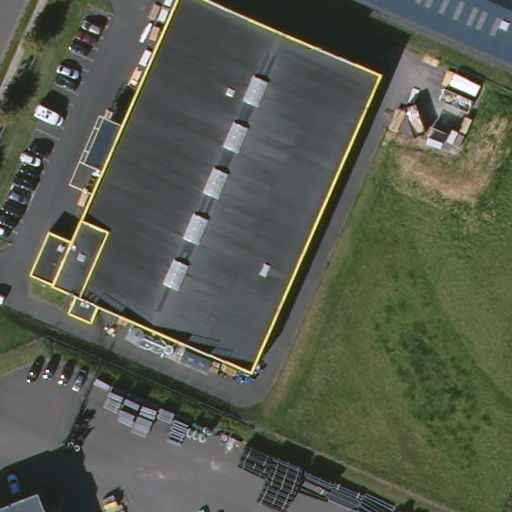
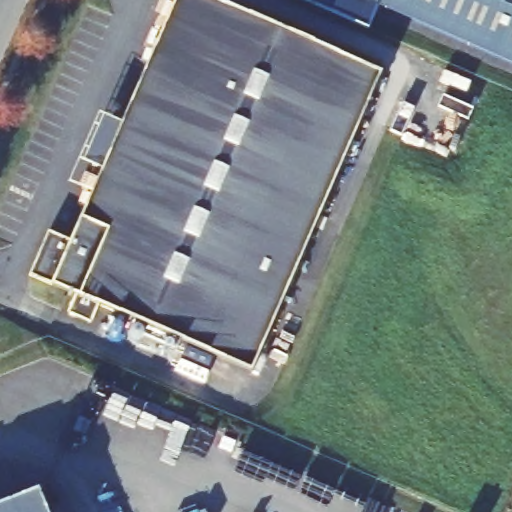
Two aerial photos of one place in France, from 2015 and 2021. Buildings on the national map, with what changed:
unchanged [(255,369),(102,302),(94,321),(71,310),(79,292),(33,272),(52,228),(75,237),(96,189),(126,120),(179,0),(225,0),(386,71),(255,369)]
unchanged [(512,0),(512,62),(364,0),(512,0)]
unchanged [(126,120),(96,189),(74,180),(104,111),(126,120)]
unchanged [(42,484),(53,512),(0,512),(0,501),(42,484)]

